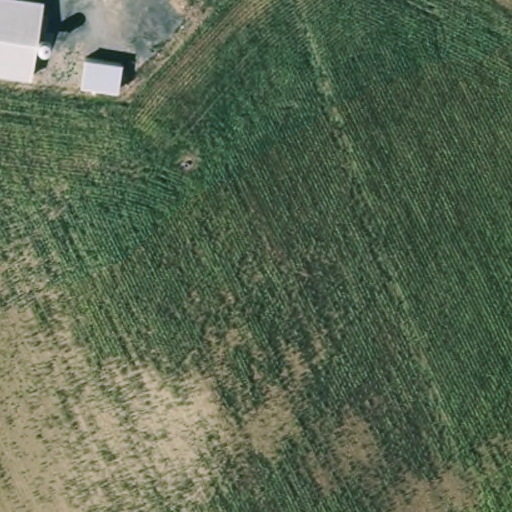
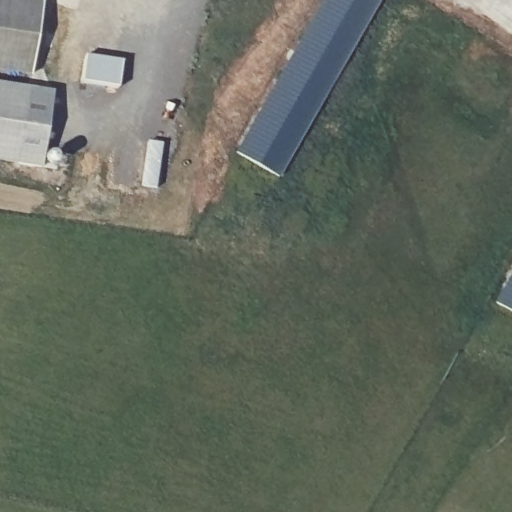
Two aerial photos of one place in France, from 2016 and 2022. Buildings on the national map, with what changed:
unchanged [(0,69),(0,0),(43,0),(31,74),(0,69)]
new [(380,0),(279,178),(235,152),(322,0),(380,0)]
unchanged [(121,59),(118,85),(81,79),(84,54),(121,59)]
new [(57,157),(55,169),(0,161),(0,83),(53,91),(44,154),(57,157)]
new [(512,274),(512,313),(495,304),(512,274)]

